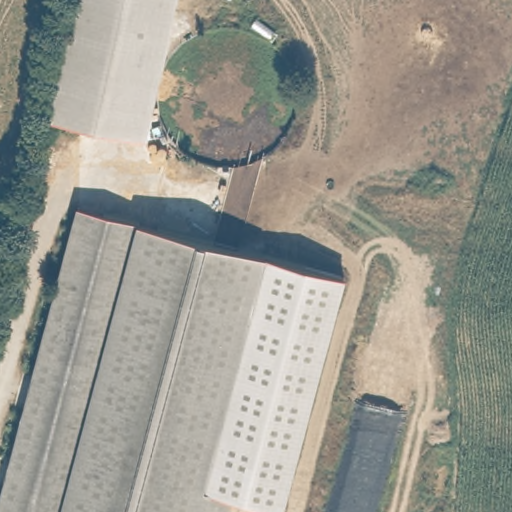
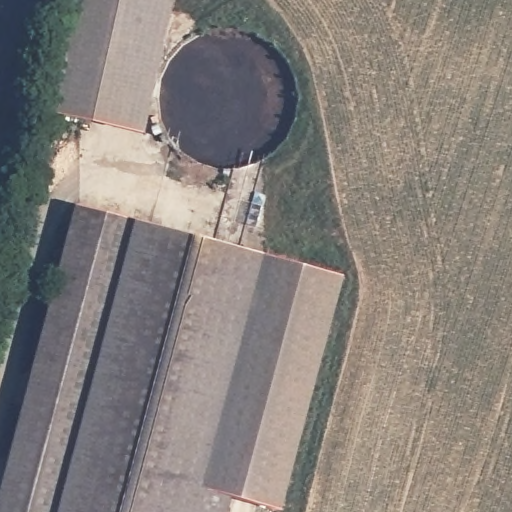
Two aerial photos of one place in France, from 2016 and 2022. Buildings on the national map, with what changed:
unchanged [(72,0),(174,0),(145,132),(48,111),(72,0)]
unchanged [(78,204),(267,255),(249,327),(267,256),(347,276),(283,509),(232,496),(228,512),(0,512),(0,505),(11,462),(78,204)]

